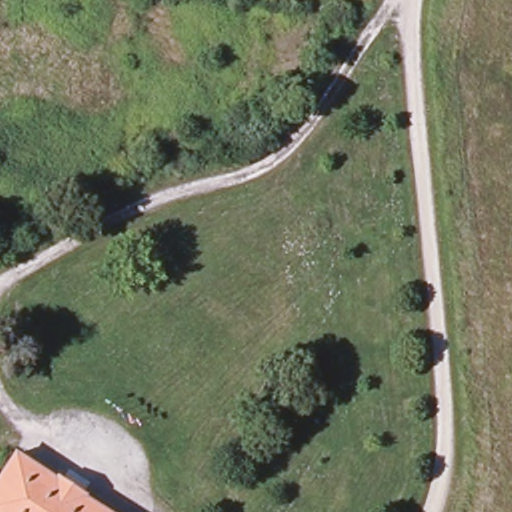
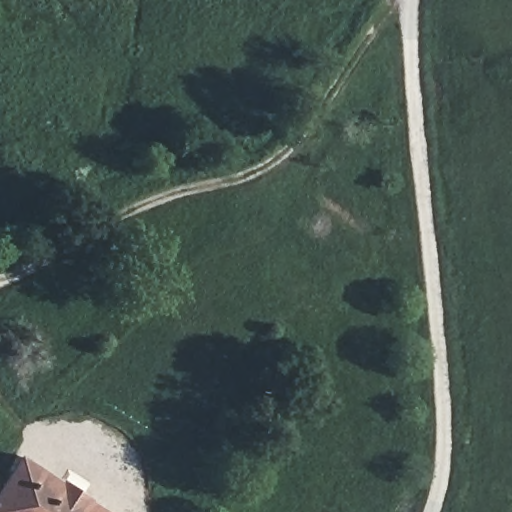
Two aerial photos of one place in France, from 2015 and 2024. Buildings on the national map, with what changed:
unchanged [(14,480),(25,468),(68,492),(74,487),(105,503),(103,512),(0,512),(0,477),(0,476),(14,480)]

